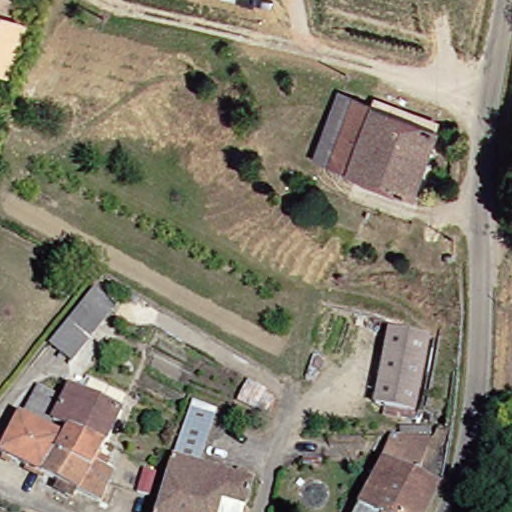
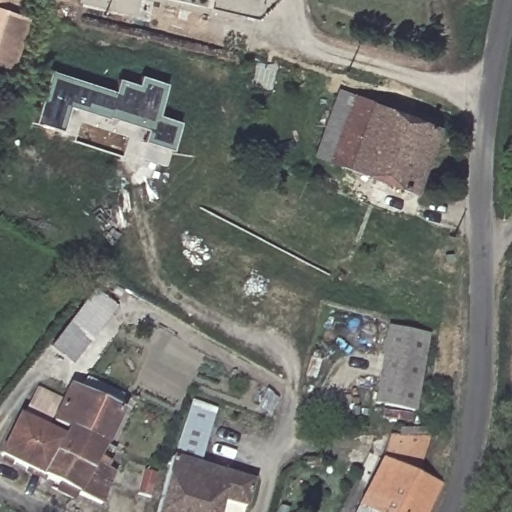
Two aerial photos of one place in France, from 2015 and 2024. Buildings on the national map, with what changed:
unchanged [(12,14),(30,20),(12,72),(0,68),(0,0),(17,0),(12,14)]
new [(55,70),(119,91),(123,78),(144,84),(146,74),(172,83),(162,114),(185,121),(170,165),(142,155),(146,140),(70,116),(65,131),(38,121),(55,70)]
unchanged [(345,87),(425,122),(400,186),(318,151),(345,87)]
unchanged [(41,342),(87,284),(110,302),(65,359),(41,342)]
unchanged [(382,325),(421,333),(408,410),(366,402),(382,325)]
unchanged [(64,381),(67,375),(76,379),(72,386),(115,408),(100,442),(63,425),(50,419),(66,383),(64,381)]
unchanged [(39,429),(56,438),(63,425),(100,442),(94,455),(109,463),(97,502),(0,454),(0,436),(10,414),(16,417),(32,388),(52,398),(45,417),(39,429)]
unchanged [(180,401),(206,409),(190,464),(164,456),(180,401)]
unchanged [(407,412),(419,410),(405,466),(430,478),(425,495),(418,512),(346,512),(385,415),(407,412)]
unchanged [(190,464),(237,478),(230,502),(228,512),(147,512),(164,456),(190,464)]

